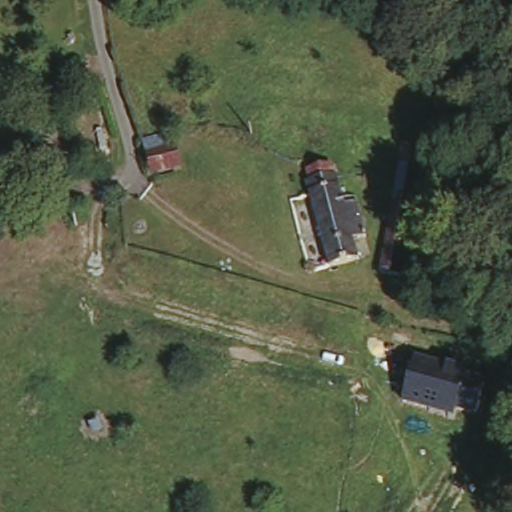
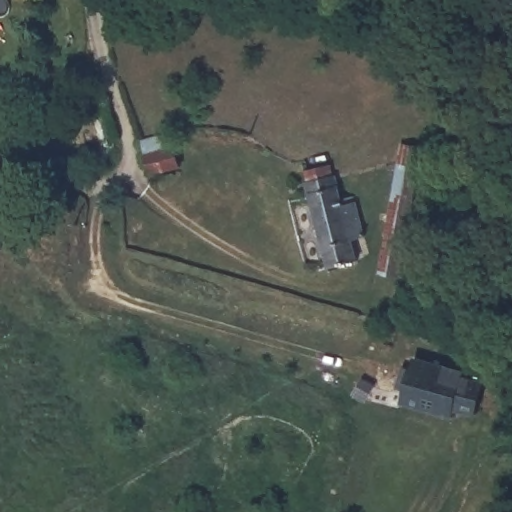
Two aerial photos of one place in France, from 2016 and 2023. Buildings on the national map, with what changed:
unchanged [(174,139),(180,169),(148,176),(142,146),(174,139)]
unchanged [(329,169),(340,207),(350,206),(357,231),(345,233),(353,259),(348,256),(341,256),(335,258),(325,261),(304,177),(329,169)]
unchanged [(458,407),(455,415),(397,403),(404,362),(460,371),(459,382),(475,385),(494,387),(492,412),(474,409),(458,407)]

